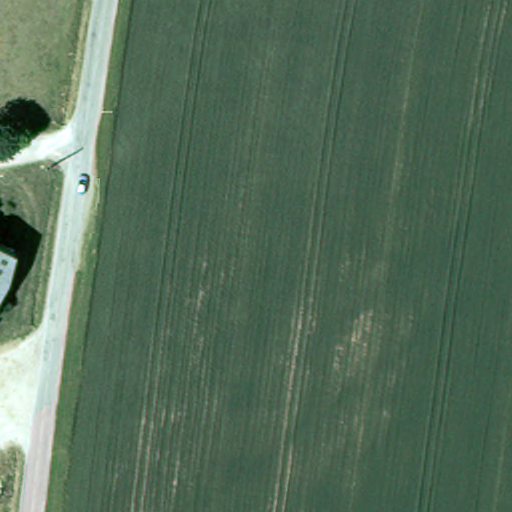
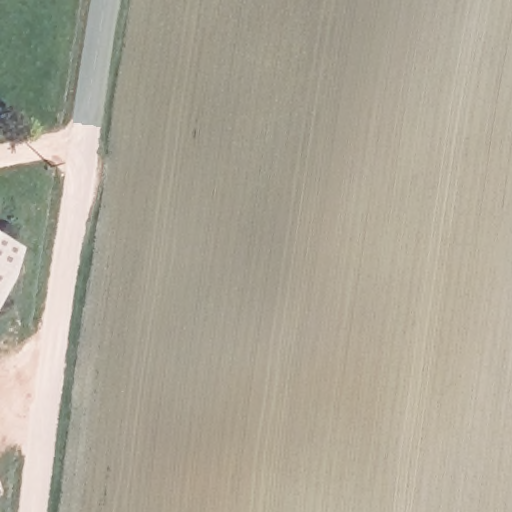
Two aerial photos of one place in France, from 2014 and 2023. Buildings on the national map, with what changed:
unchanged [(3,283),(0,289),(0,247),(10,252),(3,283)]

